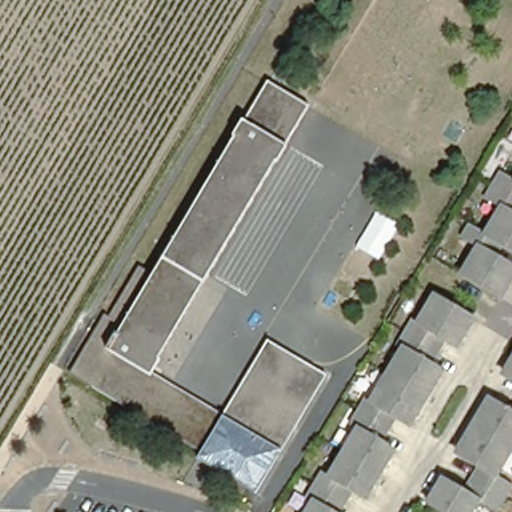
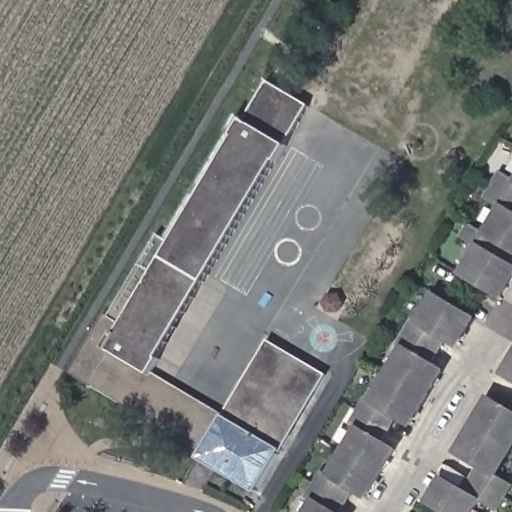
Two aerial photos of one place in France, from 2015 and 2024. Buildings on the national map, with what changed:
unchanged [(220,418),(200,452),(99,393),(88,387),(67,373),(103,313),(108,316),(139,265),(153,272),(194,206),(235,137),(232,135),(242,118),(245,119),(268,81),(309,104),(286,143),(288,146),(278,162),(275,161),(220,255),(170,337),(158,357),(161,360),(149,377),(190,401),(220,418)]
unchanged [(464,239),(472,225),(489,235),(505,209),(487,199),(503,172),(512,177),(512,249),(506,246),(499,258),(512,265),(512,285),(504,298),(465,276),(481,249),(464,239)]
unchanged [(317,503),(310,499),(325,472),(332,476),(360,429),(353,425),(369,398),(376,402),(406,350),(400,346),(416,320),(422,323),(438,297),(477,320),(469,332),(460,347),(448,340),(433,365),(446,372),(414,426),(401,418),(386,443),(399,451),(370,500),(357,492),(345,512),(313,512),(317,503)]
unchanged [(220,418),(266,341),(324,375),(270,467),(254,493),(196,458),(200,452),(220,418)]
unchanged [(512,368),(512,377),(508,375),(512,368)]
unchanged [(512,483),(512,496),(503,512),(498,512),(483,503),(478,512),(444,512),(431,505),(446,479),(468,492),(483,467),(461,454),(493,400),(512,411),(512,457),(500,477),(512,483)]

